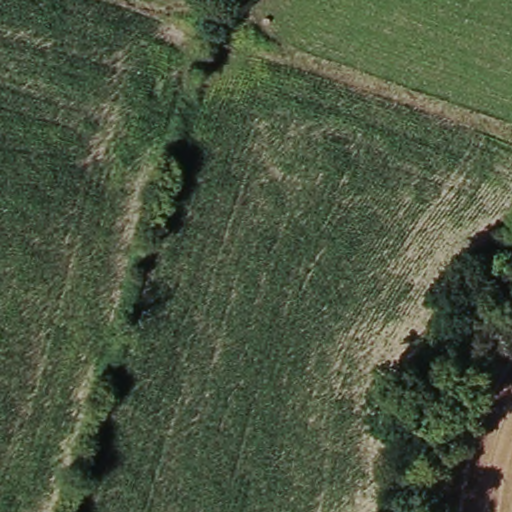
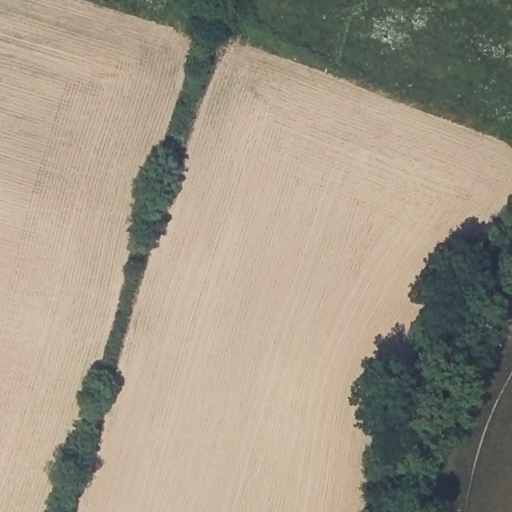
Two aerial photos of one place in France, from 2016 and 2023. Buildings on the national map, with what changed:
[]

